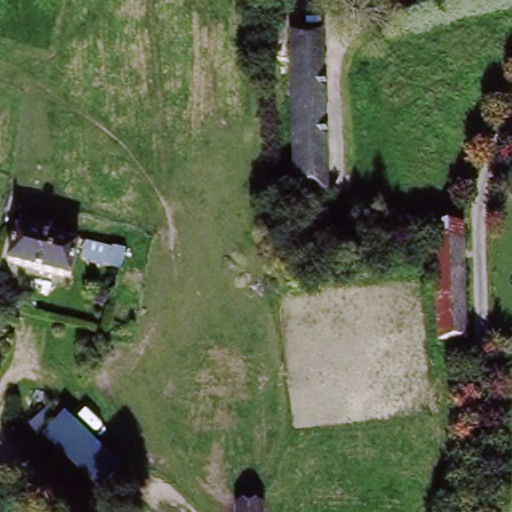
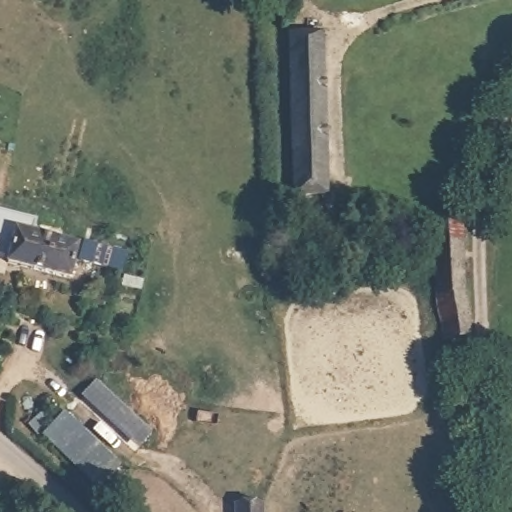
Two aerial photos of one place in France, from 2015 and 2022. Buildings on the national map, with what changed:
unchanged [(290,200),(291,39),(306,40),(307,31),(328,31),(328,40),(328,200),(290,200)]
unchanged [(7,270),(15,235),(42,238),(44,225),(66,229),(65,242),(81,245),(88,247),(86,258),(79,256),(72,285),(7,270)]
unchanged [(452,338),(442,337),(441,255),(441,230),(464,229),(465,338),(452,338)]
unchanged [(65,412),(117,465),(96,486),(43,433),(65,412)]
unchanged [(240,506),(268,507),(268,512),(240,512),(240,506)]

